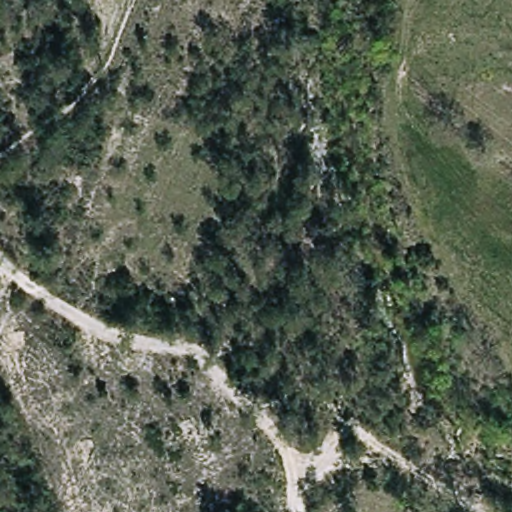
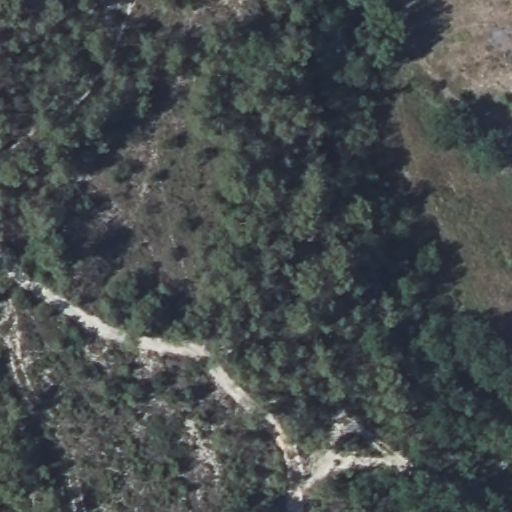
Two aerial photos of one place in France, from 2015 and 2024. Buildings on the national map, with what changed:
[]

